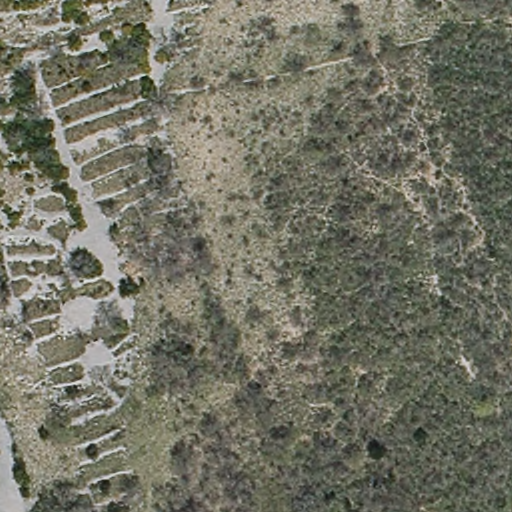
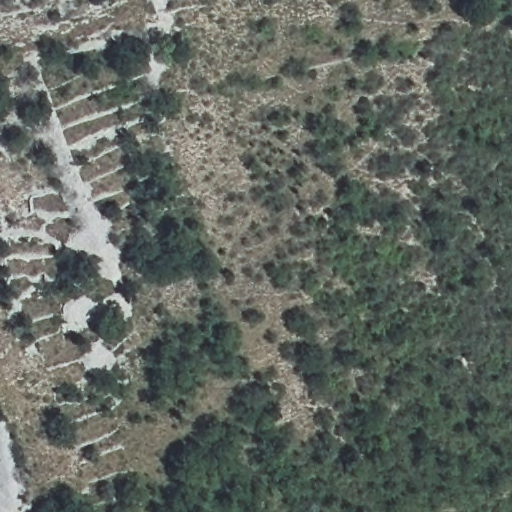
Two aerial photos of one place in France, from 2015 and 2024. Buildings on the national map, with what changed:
[]

